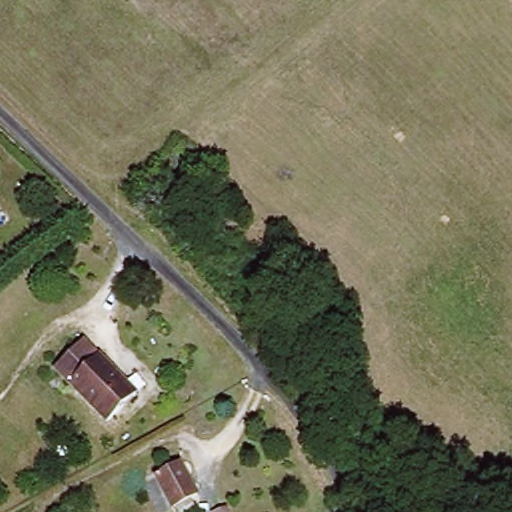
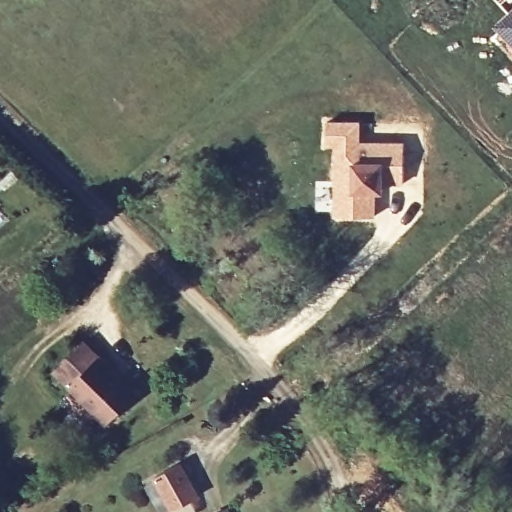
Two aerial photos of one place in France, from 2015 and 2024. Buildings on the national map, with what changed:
new [(496,23),(509,11),(498,0),(512,0),(512,41),(496,23)]
new [(359,121),(359,142),(405,142),(405,183),(373,182),(373,214),(336,214),(337,143),(327,143),(327,122),(359,121)]
unchanged [(109,423),(59,366),(87,341),(137,398),(109,423)]
unchanged [(160,472),(185,463),(197,496),(171,505),(160,472)]

